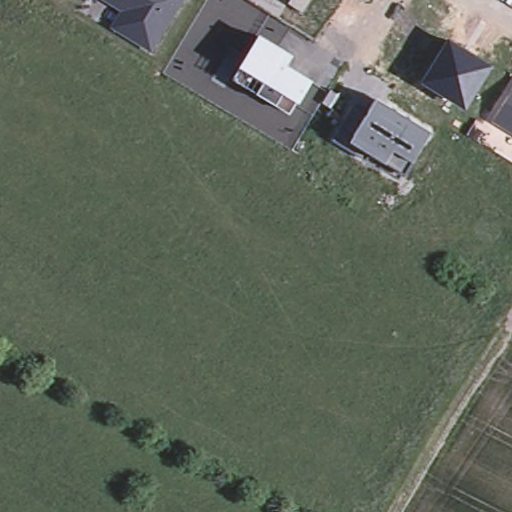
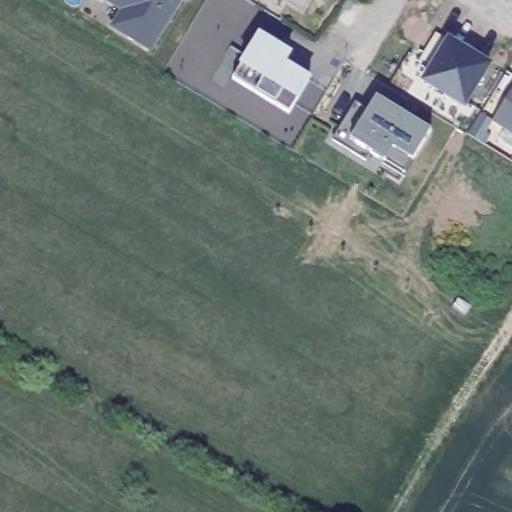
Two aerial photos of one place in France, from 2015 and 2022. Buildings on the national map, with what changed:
unchanged [(149,52),(111,29),(122,9),(105,0),(182,0),(149,52)]
unchanged [(287,2),(289,0),(308,0),(302,10),(287,2)]
unchanged [(288,53),(282,63),(308,79),(288,112),(232,77),(257,34),(282,49),(288,53)]
unchanged [(420,81),(449,37),(492,64),(464,107),(420,81)]
unchanged [(512,92),(512,135),(493,122),(512,92)]
unchanged [(386,158),(384,162),(367,152),(364,159),(332,139),(354,102),(369,107),(375,96),(430,130),(410,160),(402,171),(386,158)]

